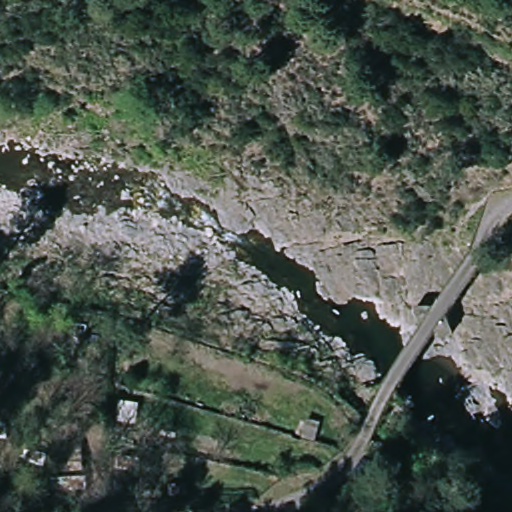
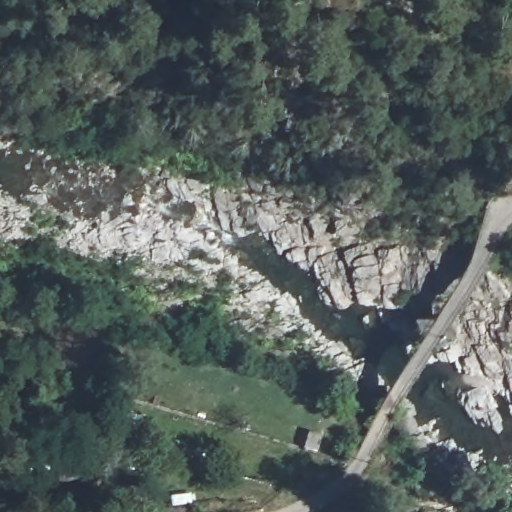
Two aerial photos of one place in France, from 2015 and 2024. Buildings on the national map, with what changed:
unchanged [(323,435),(318,453),(303,450),(308,431),(323,435)]
unchanged [(98,478),(61,482),(58,457),(96,454),(98,478)]
unchanged [(511,512),(458,512),(474,488),(477,491),(482,482),(512,503),(512,507),(509,511),(511,512)]

